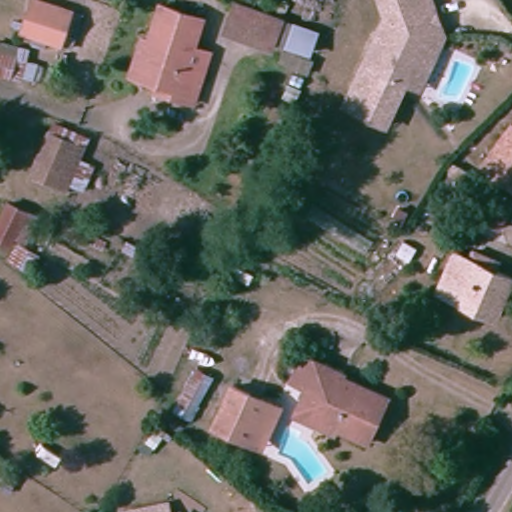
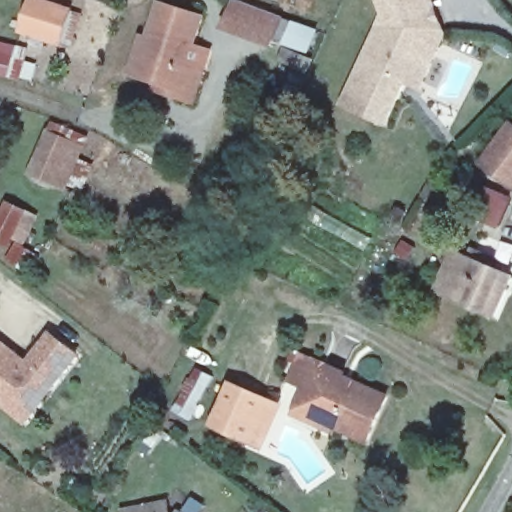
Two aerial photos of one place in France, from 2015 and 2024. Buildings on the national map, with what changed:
unchanged [(70,42),(28,29),(38,0),(43,0),(80,12),(70,42)]
unchanged [(225,38),(230,25),(238,0),(253,0),(287,14),(278,40),(274,53),(225,38)]
unchanged [(394,11),(429,0),(441,0),(445,13),(435,16),(440,31),(419,77),(417,82),(398,124),(382,117),(355,105),(375,61),(383,42),(385,38),(395,15),(394,11)]
unchanged [(390,0),(429,0),(394,11),(390,0)]
unchanged [(299,6),(327,15),(312,70),(285,61),(299,6)]
unchanged [(419,77),(440,31),(435,16),(445,13),(454,39),(431,89),(430,87),(417,82),(419,77)]
unchanged [(140,74),(129,70),(142,32),(154,36),(160,16),(204,33),(197,50),(217,55),(211,74),(199,108),(178,100),(157,93),(161,82),(140,74)]
unchanged [(0,73),(0,41),(28,46),(26,58),(42,60),(36,80),(0,73)]
new [(510,121),(512,122),(512,189),(479,164),(510,121)]
unchanged [(46,122),(90,134),(84,160),(96,164),(86,190),(32,176),(46,122)]
demolished [(493,166),(512,139),(512,174),(510,177),(493,166)]
unchanged [(9,257),(17,244),(0,240),(0,202),(43,212),(31,247),(42,258),(29,273),(9,257)]
unchanged [(465,250),(512,272),(512,309),(507,319),(445,289),(465,250)]
new [(27,359),(50,329),(83,355),(28,426),(0,404),(0,337),(27,359)]
unchanged [(318,377),(310,373),(317,356),(376,383),(391,389),(371,438),(356,432),(341,426),(336,436),(289,416),(299,395),(308,400),(318,377)]
unchanged [(255,450),(241,444),(207,430),(225,388),(259,403),(273,409),(255,450)]
unchanged [(185,504),(187,512),(136,512),(135,511),(185,504)]

